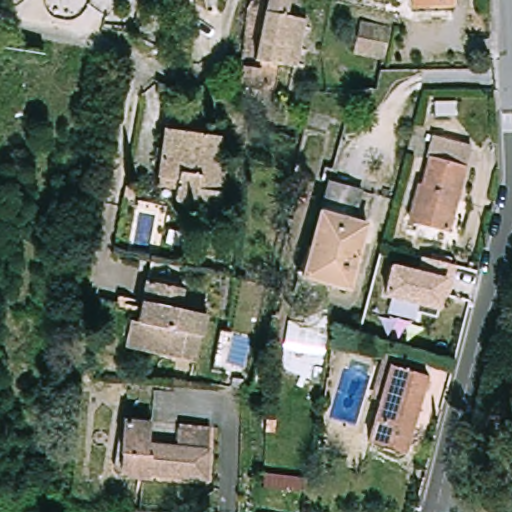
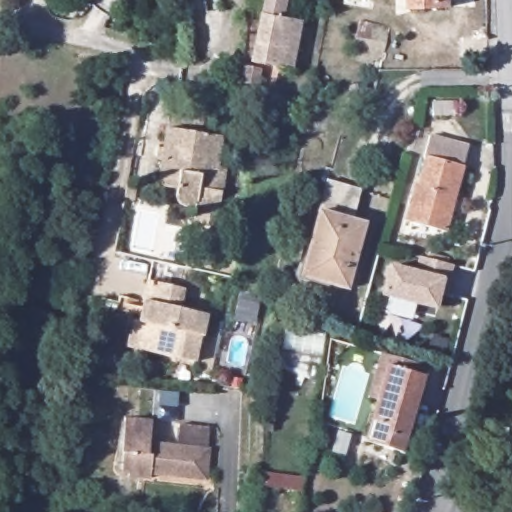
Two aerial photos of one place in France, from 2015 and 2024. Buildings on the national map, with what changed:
unchanged [(270,10),(272,0),(292,0),(288,15),(308,20),(297,67),(259,59),(270,10)]
unchanged [(412,0),(451,0),(452,8),(419,9),(412,10),(412,0)]
unchanged [(390,28),(383,60),(352,54),(360,21),(390,28)]
unchanged [(440,96),(460,95),(461,110),(439,110),(440,96)]
unchanged [(199,222),(200,214),(201,203),(201,205),(200,206),(199,207),(197,209),(196,210),(194,211),(193,211),(191,211),(189,211),(187,211),(185,210),(184,210),(182,209),(181,207),(180,205),(180,204),(179,202),(179,200),(179,199),(180,196),(180,192),(162,189),(173,112),(210,115),(207,137),(226,140),(222,171),(230,172),(223,217),(222,226),(199,222)]
unchanged [(446,222),(412,213),(423,177),(427,179),(435,150),(430,150),(437,128),(476,139),(460,194),(450,224),(446,222)]
unchanged [(309,264),(330,186),(363,195),(354,226),(367,230),(350,284),(332,278),(307,271),(309,264)]
unchanged [(447,281),(442,280),(436,308),(383,295),(390,266),(417,273),(420,257),(451,265),(447,281)]
unchanged [(136,318),(142,319),(146,300),(151,280),(185,287),(181,307),(210,315),(205,336),(202,335),(196,360),(142,348),(129,345),(136,318)]
unchanged [(426,376),(402,451),(367,441),(390,365),(426,376)]
unchanged [(125,451),(129,418),(152,421),(150,442),(179,445),(182,425),(212,428),(209,450),(211,450),(207,480),(152,474),(151,478),(129,476),(123,475),(125,451)]
unchanged [(318,491),(303,490),(263,485),(265,472),(305,477),(320,478),(318,491)]

